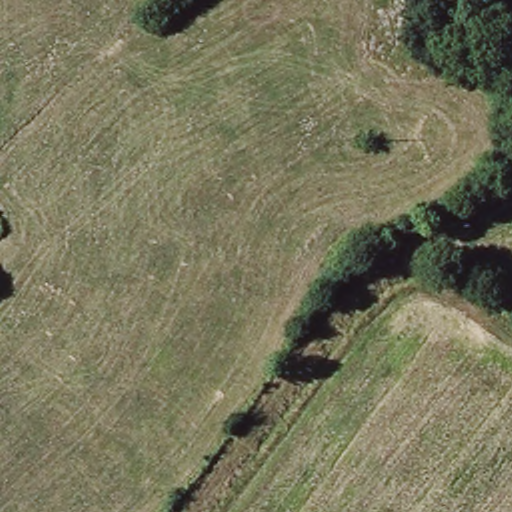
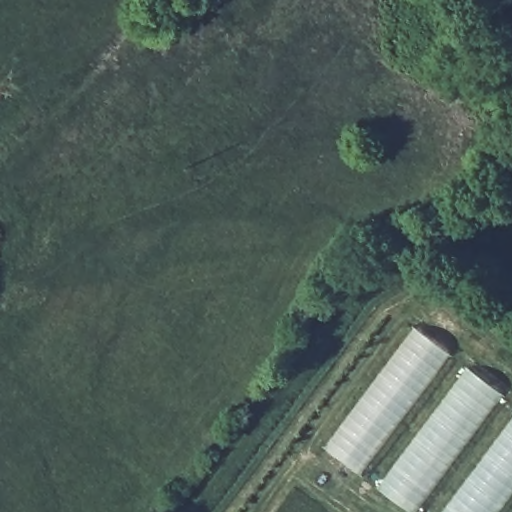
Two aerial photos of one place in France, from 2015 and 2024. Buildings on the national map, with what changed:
new [(413,328),(450,355),(411,407),(358,474),(323,448),(413,328)]
new [(465,367),(502,396),(413,512),(409,512),(375,487),(465,367)]
new [(512,416),(512,493),(498,512),(442,512),(512,416)]

